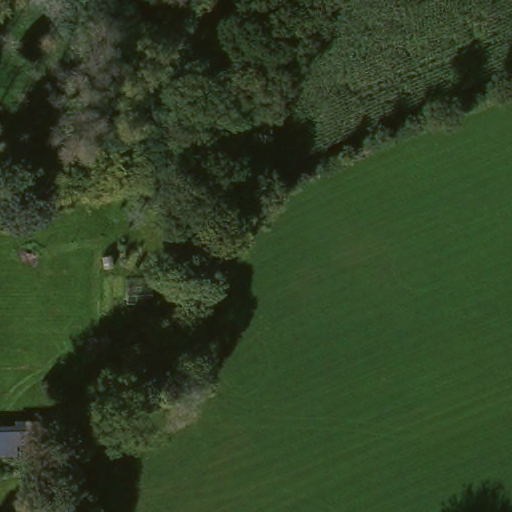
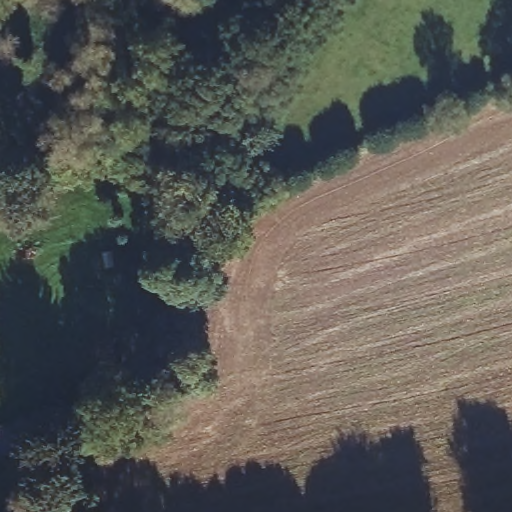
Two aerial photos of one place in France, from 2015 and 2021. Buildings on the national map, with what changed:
[]

